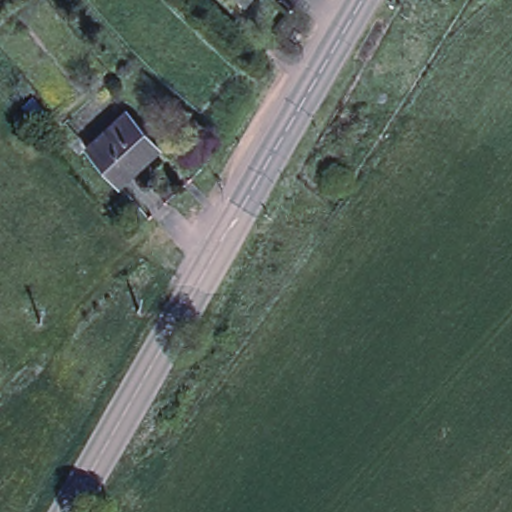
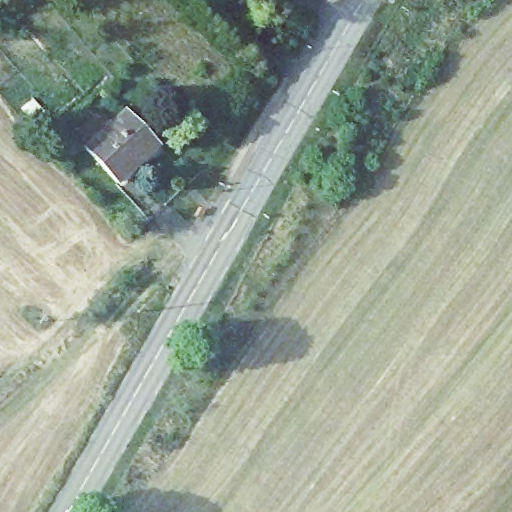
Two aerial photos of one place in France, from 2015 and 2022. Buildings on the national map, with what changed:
unchanged [(45,112),(34,123),(20,107),(32,97),(45,112)]
unchanged [(162,145),(120,184),(89,149),(130,112),(162,145)]

